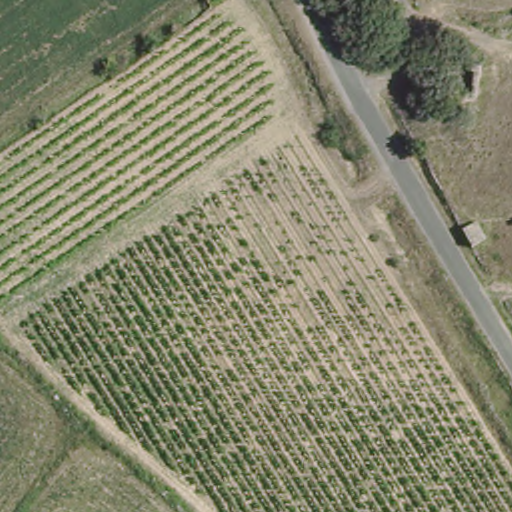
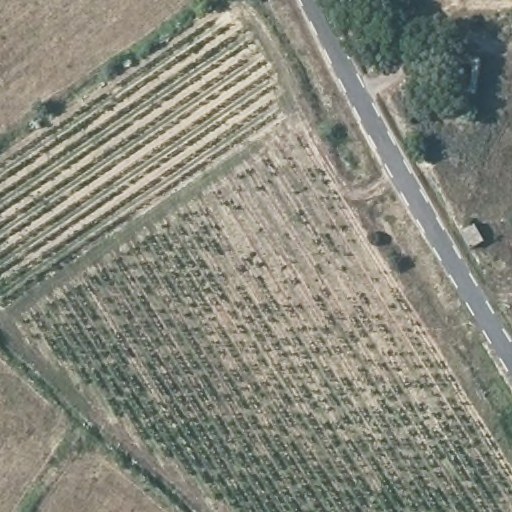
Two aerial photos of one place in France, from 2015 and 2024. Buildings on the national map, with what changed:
unchanged [(470,258),(457,237),(476,224),(491,250),(470,258)]

